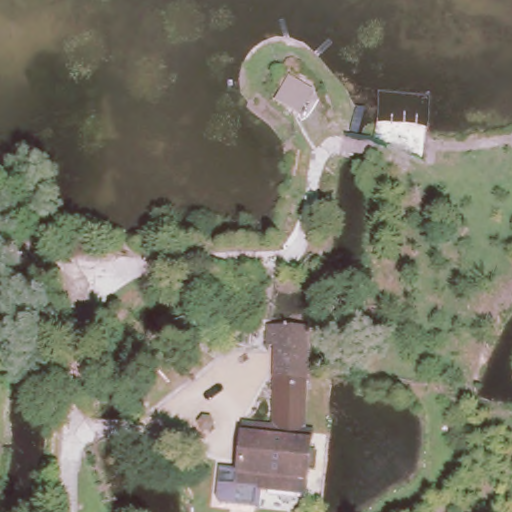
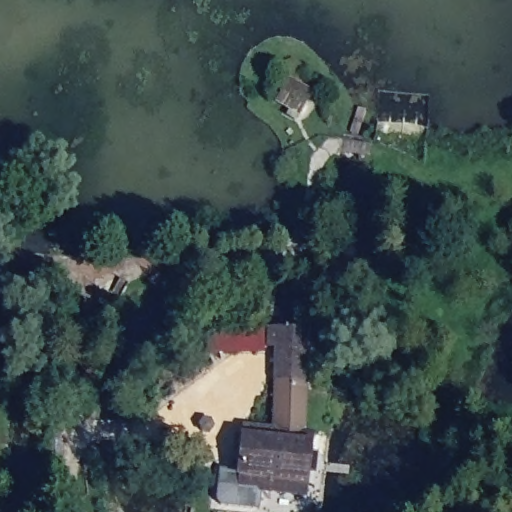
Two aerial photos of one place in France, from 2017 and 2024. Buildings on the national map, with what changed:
unchanged [(303,325),(307,374),(269,377),(269,325),(303,325)]
unchanged [(306,424),(272,421),(273,381),(307,384),(306,424)]
unchanged [(321,425),(314,497),(242,489),(248,419),(321,425)]

